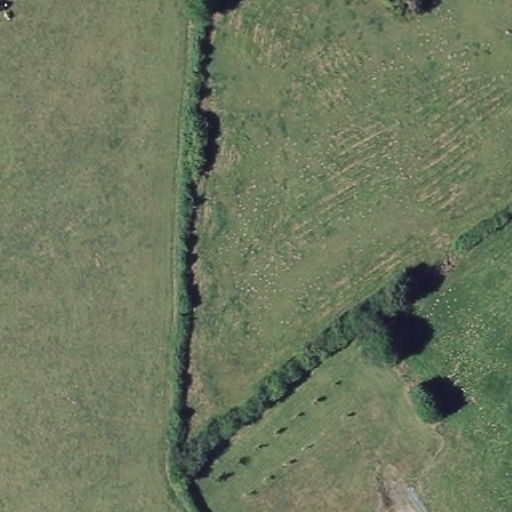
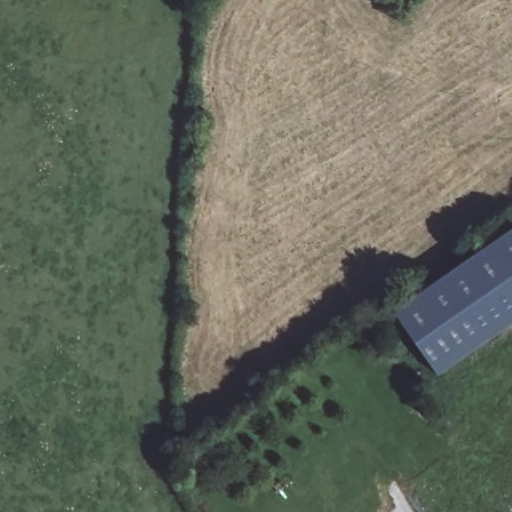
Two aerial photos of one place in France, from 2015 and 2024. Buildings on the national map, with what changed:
new [(512,247),(512,337),(444,382),(402,320),(512,247)]

